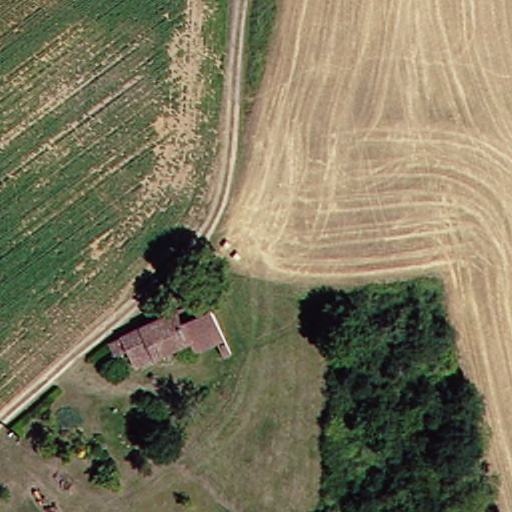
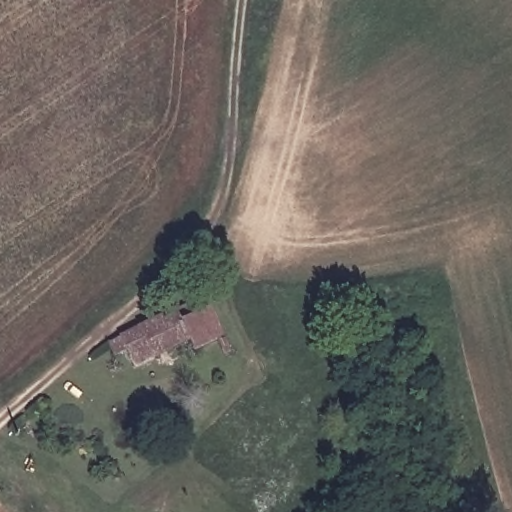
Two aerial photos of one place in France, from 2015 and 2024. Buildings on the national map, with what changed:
unchanged [(126,353),(123,347),(113,352),(107,337),(170,313),(195,303),(199,313),(205,312),(212,337),(165,354),(132,365),(126,353)]

